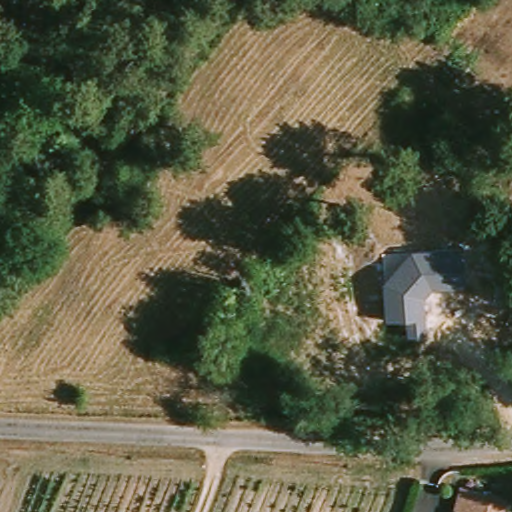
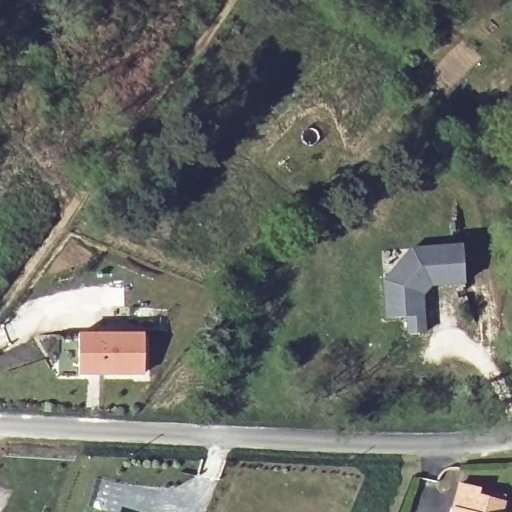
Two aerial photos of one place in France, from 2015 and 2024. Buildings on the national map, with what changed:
unchanged [(461,242),(464,281),(432,284),(424,297),(427,332),(408,333),(406,317),(386,319),(382,280),(410,247),(461,242)]
new [(84,332),(149,332),(150,371),(84,371),(84,332)]
unchanged [(512,493),(512,512),(464,512),(472,483),(512,493)]

